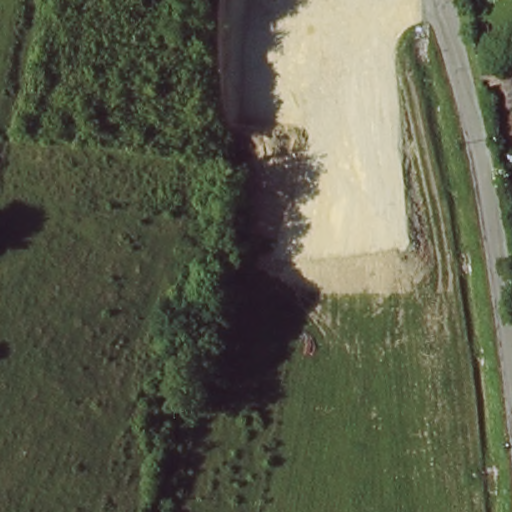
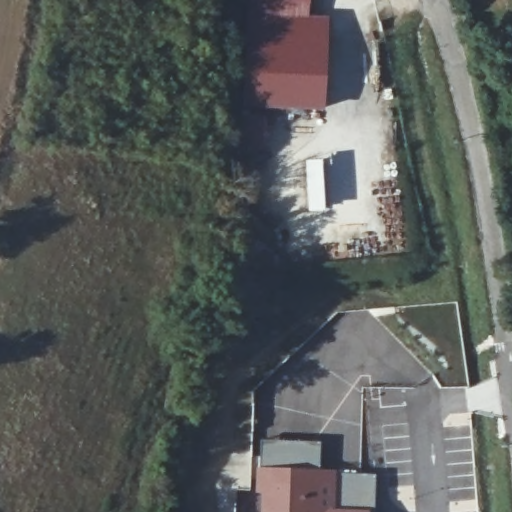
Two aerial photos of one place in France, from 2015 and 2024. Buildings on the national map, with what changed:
new [(321,110),(244,106),(249,12),(326,16),(321,110)]
new [(260,512),(264,470),(376,470),(377,512),(260,512)]

